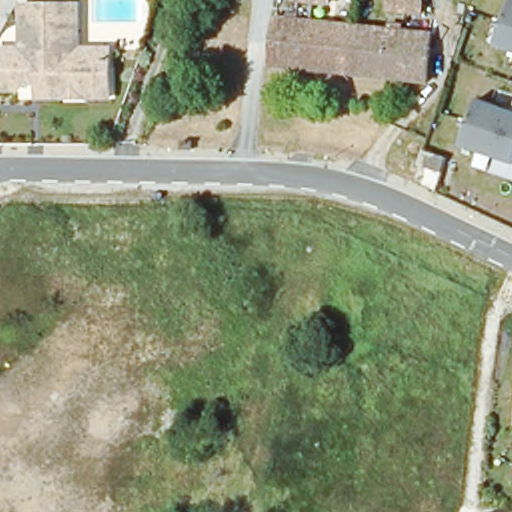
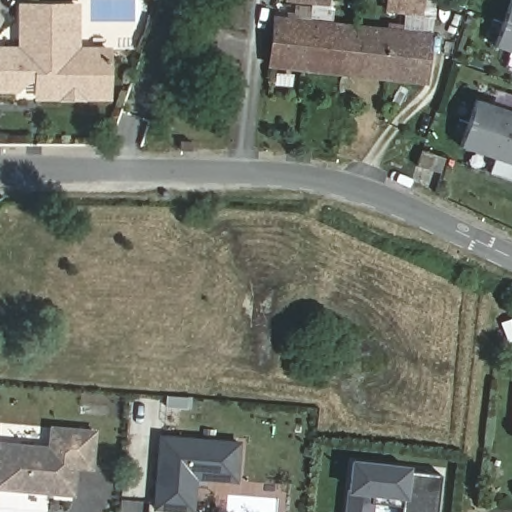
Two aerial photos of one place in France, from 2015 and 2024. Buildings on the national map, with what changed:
unchanged [(303,0),(327,0),(327,3),(303,0)]
unchanged [(402,14),(403,0),(437,0),(435,18),(402,14)]
unchanged [(495,45),(511,0),(512,0),(512,52),(495,45)]
unchanged [(31,71),(31,77),(21,88),(0,88),(0,47),(25,47),(25,3),(81,3),(81,47),(113,46),(113,89),(113,96),(40,96),(40,89),(40,71),(31,71)]
unchanged [(425,80),(269,64),(274,18),(430,34),(425,80)]
unchanged [(494,174),(501,159),(463,149),(478,101),(512,112),(512,179),(494,174)]
new [(0,488),(0,443),(48,447),(50,427),(93,431),(90,467),(74,466),(73,484),(71,493),(55,492),(0,488)]
new [(160,436),(238,443),(235,481),(195,477),(192,511),(154,508),(160,436)]
new [(401,502),(371,499),(370,512),(346,512),(351,463),(405,469),(405,472),(440,475),(436,512),(400,512),(401,502)]

